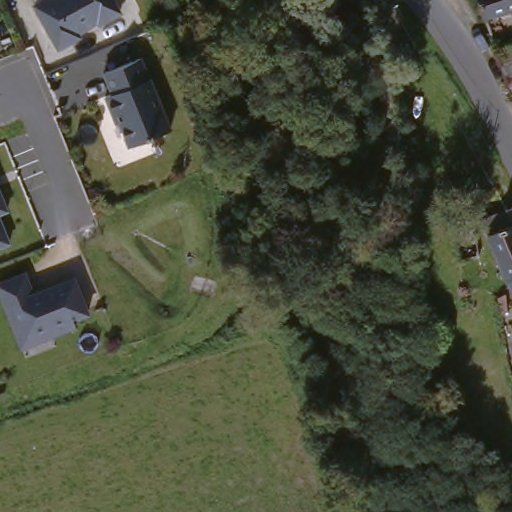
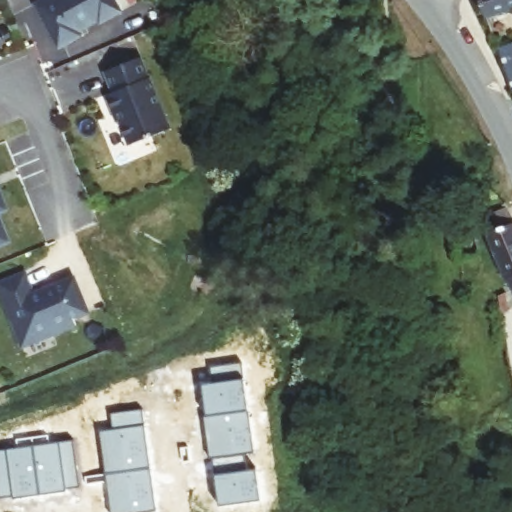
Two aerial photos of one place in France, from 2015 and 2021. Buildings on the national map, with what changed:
unchanged [(115,0),(121,12),(100,23),(98,20),(78,30),(75,37),(63,44),(55,42),(36,2),(41,0),(115,0)]
unchanged [(471,0),(512,0),(512,12),(479,23),(471,0)]
unchanged [(509,47),(512,56),(512,96),(506,98),(486,43),(500,38),(504,50),(509,47)]
unchanged [(139,54),(148,75),(148,74),(168,126),(126,142),(113,110),(111,111),(103,91),(111,89),(103,67),(139,54)]
unchanged [(4,217),(0,219),(0,206),(4,217)]
unchanged [(476,222),(501,212),(508,227),(511,226),(512,230),(512,303),(498,281),(476,222)]
unchanged [(5,250),(0,251),(0,236),(5,250)]
unchanged [(0,304),(0,279),(20,272),(28,292),(69,277),(82,313),(67,318),(69,325),(46,334),(16,346),(0,304)]
new [(213,383),(211,367),(243,363),(254,455),(243,455),(245,471),(256,470),(259,502),(216,507),(211,460),(208,460),(203,416),(206,416),(203,384),(213,383)]
new [(103,472),(98,429),(112,427),(111,412),(143,408),(154,511),(144,512),(107,512),(104,480),(84,482),(83,475),(103,472)]
new [(18,447),(17,440),(49,436),(49,444),(74,442),(79,488),(66,491),(66,493),(12,499),(12,497),(0,497),(0,449),(18,447)]
new [(188,447),(189,462),(181,462),(179,448),(188,447)]

